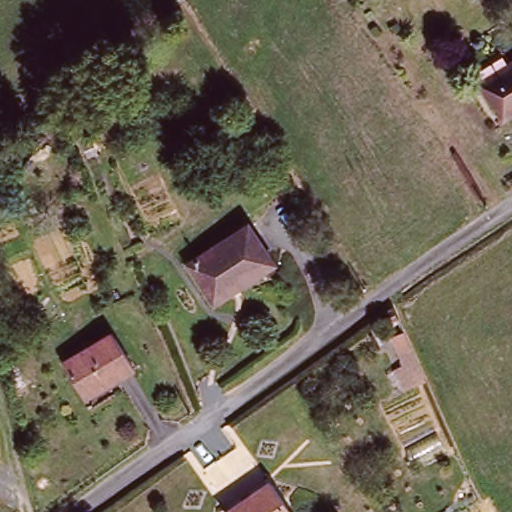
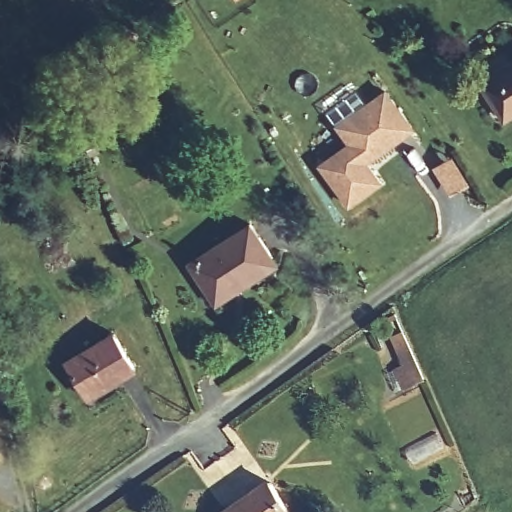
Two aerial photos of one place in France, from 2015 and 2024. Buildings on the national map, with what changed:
unchanged [(477,81),(512,59),(512,104),(496,113),(477,81)]
new [(417,126),(368,162),(382,182),(348,207),(317,165),(346,143),(334,125),(387,87),(417,126)]
new [(454,156),(470,184),(454,194),(437,166),(454,156)]
unchanged [(189,262),(247,222),(273,260),(215,300),(189,262)]
unchanged [(427,380),(404,390),(395,369),(404,365),(392,338),(405,331),(427,380)]
unchanged [(131,367),(88,393),(67,359),(111,333),(131,367)]
unchanged [(224,511),(269,481),(289,512),(225,512),(224,511)]

